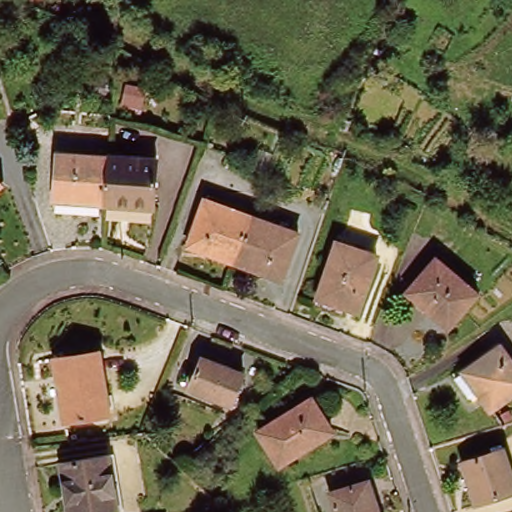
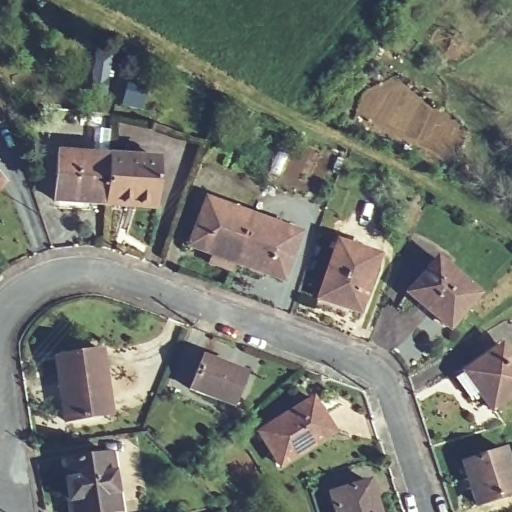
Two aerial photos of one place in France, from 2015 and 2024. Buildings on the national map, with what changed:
unchanged [(105,207),(52,203),(56,156),(107,160),(105,207)]
unchanged [(153,211),(105,207),(107,160),(157,162),(153,211)]
unchanged [(187,247),(204,202),(250,219),(234,263),(187,247)]
unchanged [(297,236),(282,281),(234,263),(250,219),(297,236)]
unchanged [(337,245),(377,258),(359,313),(318,301),(337,245)]
unchanged [(477,294),(447,328),(407,295),(436,261),(477,294)]
unchanged [(512,368),(512,395),(489,412),(463,374),(498,348),(512,368)]
unchanged [(54,359),(97,352),(107,414),(63,421),(54,359)]
unchanged [(233,406),(191,390),(202,360),(245,376),(233,406)]
unchanged [(312,402),(332,433),(280,467),(260,435),(312,402)]
unchanged [(512,473),(512,494),(475,505),(462,464),(505,451),(512,473)]
unchanged [(112,512),(68,512),(61,463),(110,456),(118,511),(112,512)]
unchanged [(337,512),(332,495),(369,483),(378,512),(337,512)]

